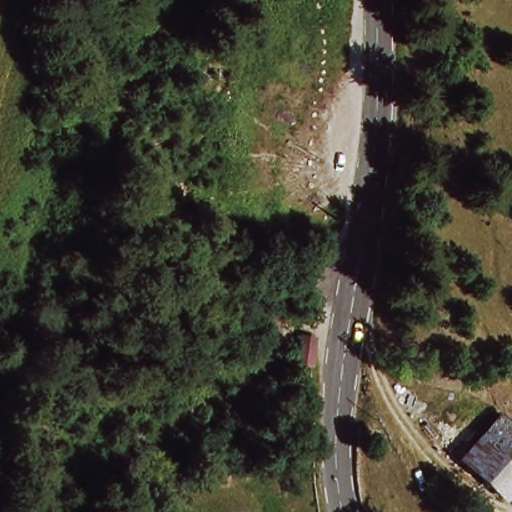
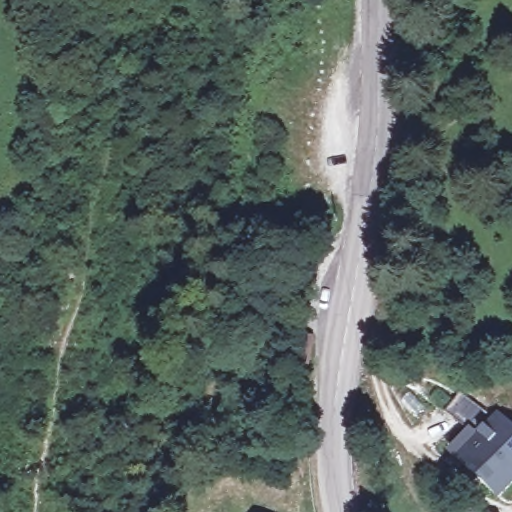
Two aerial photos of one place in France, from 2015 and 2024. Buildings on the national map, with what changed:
unchanged [(482,426),(488,432),(508,410),(512,414),(512,445),(508,450),(512,453),(512,491),(509,495),(487,473),(479,481),(450,456),(461,446),(482,426)]
unchanged [(508,450),(512,445),(512,453),(508,450)]

